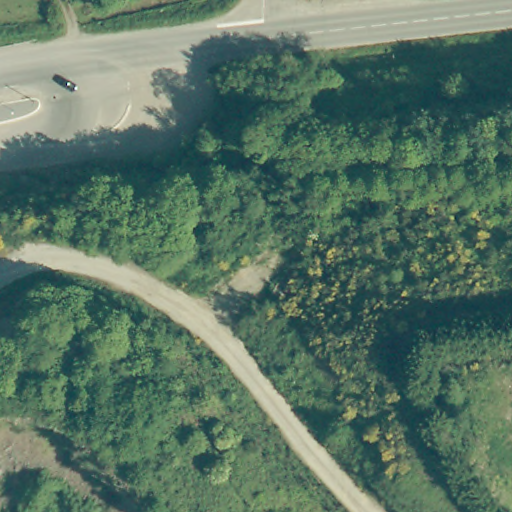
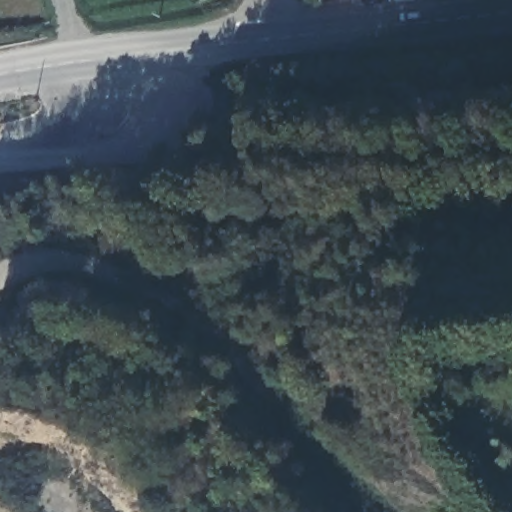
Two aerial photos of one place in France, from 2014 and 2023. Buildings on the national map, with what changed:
[]

